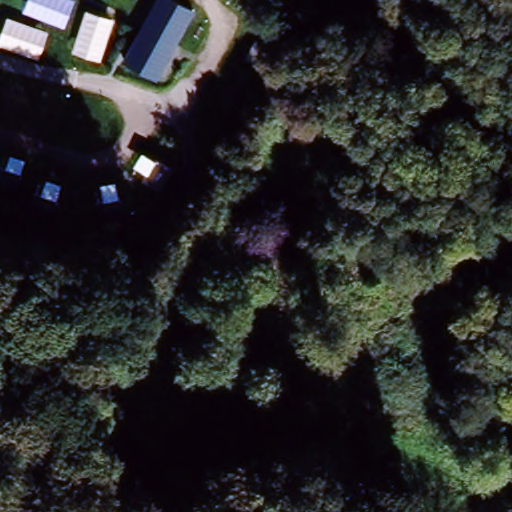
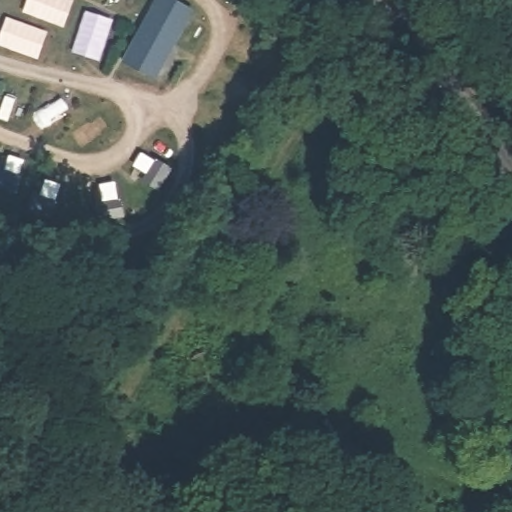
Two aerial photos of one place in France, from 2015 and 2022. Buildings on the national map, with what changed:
unchanged [(155,82),(121,61),(154,0),(172,0),(194,12),(155,82)]

